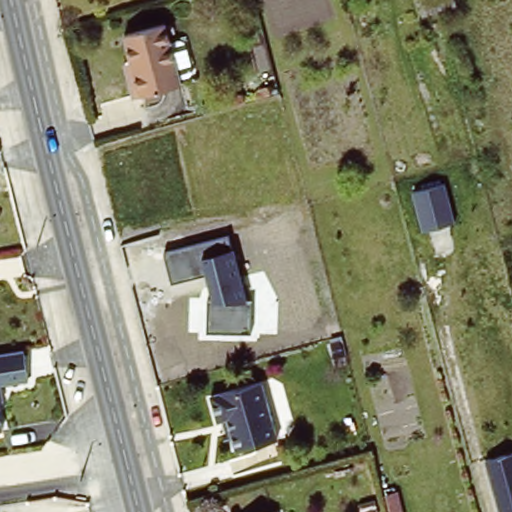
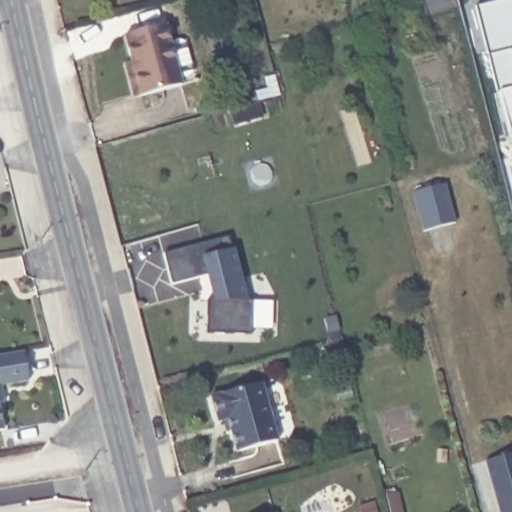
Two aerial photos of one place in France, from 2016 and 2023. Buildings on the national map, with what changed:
new [(477,7),(505,0),(512,0),(512,49),(511,49),(512,54),(512,141),(510,141),(477,7)]
unchanged [(125,64),(132,61),(125,36),(153,29),(167,26),(182,84),(168,88),(141,95),(132,97),(125,64)]
unchanged [(412,192),(445,183),(455,222),(422,230),(412,192)]
unchanged [(237,251),(245,297),(254,298),(252,332),(208,331),(209,302),(200,273),(174,280),(165,251),(230,232),(237,251)]
unchanged [(0,383),(0,355),(22,352),(27,378),(0,383)]
unchanged [(265,380),(281,438),(242,448),(232,415),(222,418),(217,392),(265,380)]
unchanged [(2,401),(0,401),(0,392),(2,401)]
unchanged [(2,428),(0,429),(0,421),(2,428)]
unchanged [(512,451),(512,512),(502,512),(487,456),(512,451)]
unchanged [(272,512),(270,512),(272,511),(272,512)]

